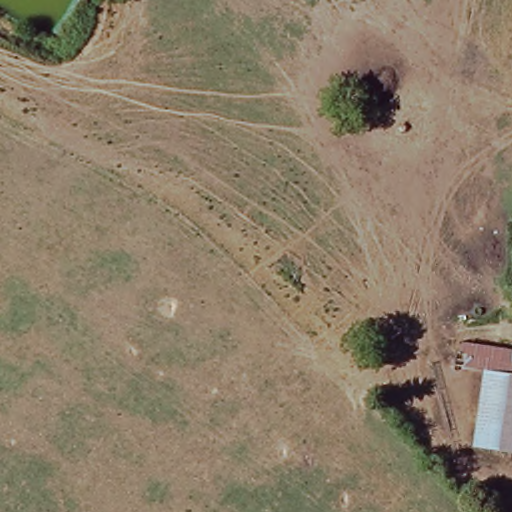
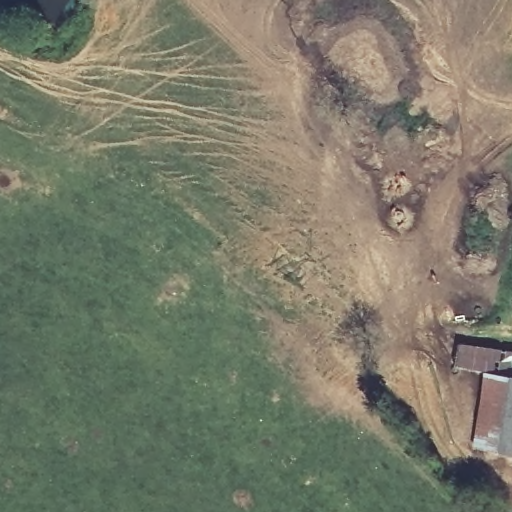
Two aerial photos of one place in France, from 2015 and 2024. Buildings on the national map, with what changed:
unchanged [(487,373),(462,368),(466,348),(512,357),(512,450),(473,441),(487,373)]

